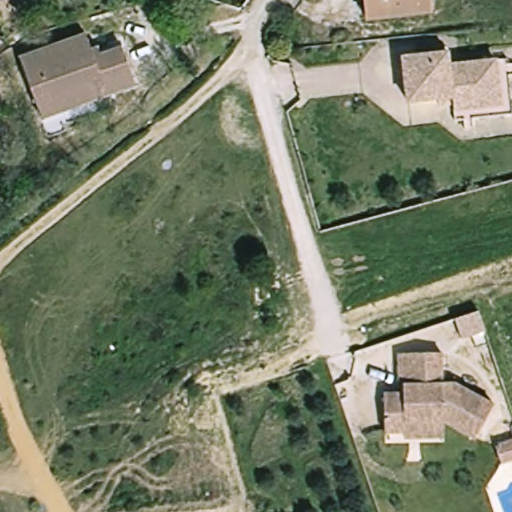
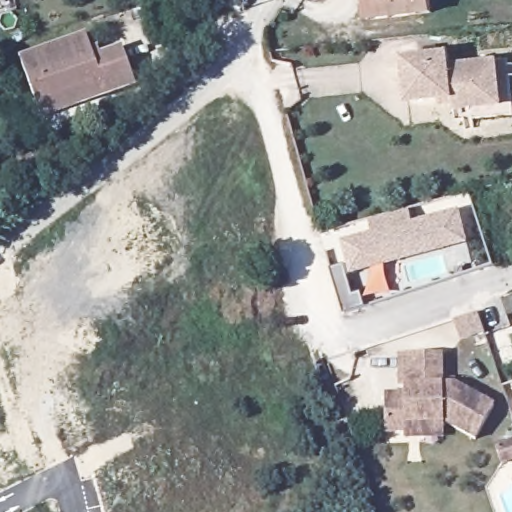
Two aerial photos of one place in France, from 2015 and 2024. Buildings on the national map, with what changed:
unchanged [(437,14),(372,20),(370,0),(435,0),(437,14)]
unchanged [(91,33),(99,57),(127,46),(140,85),(47,119),(25,57),(91,33)]
unchanged [(444,99),(414,102),(409,57),(454,52),(455,65),(495,61),(502,60),(507,104),(460,109),(460,103),(445,105),(444,99)]
new [(352,270),(352,268),(344,239),(372,232),(368,217),(408,206),(412,221),(457,209),(462,229),(465,240),(352,270)]
new [(362,292),(365,304),(343,311),(334,279),(330,267),(344,263),(348,274),(354,294),(362,292)]
unchanged [(477,314),(484,333),(460,341),(453,322),(477,314)]
unchanged [(414,440),(414,435),(394,435),(393,402),(393,396),(412,395),(412,388),(407,388),(406,356),(450,355),(450,380),(463,379),(463,381),(463,386),(502,407),(484,441),(452,424),(452,439),(414,440)]
unchanged [(512,462),(501,465),(495,446),(512,441),(512,462)]

